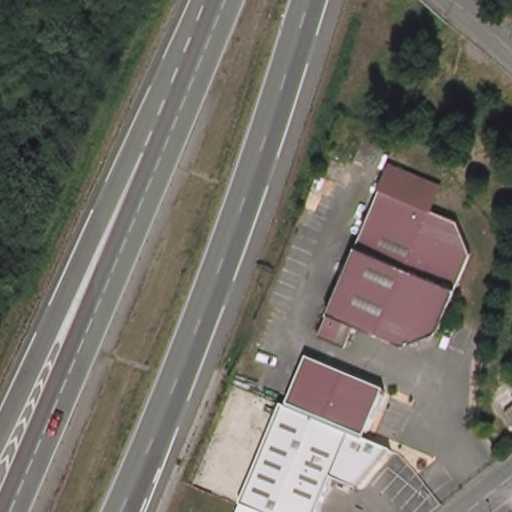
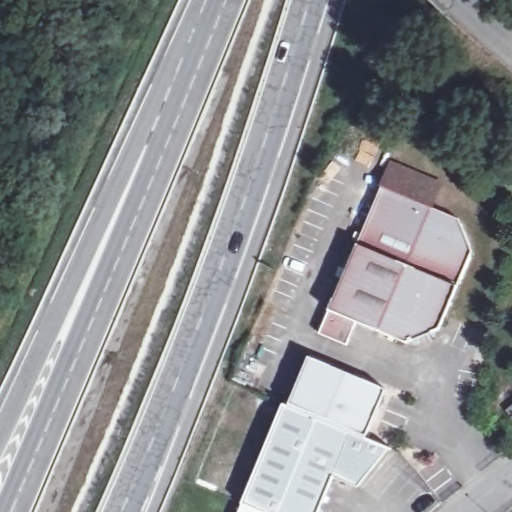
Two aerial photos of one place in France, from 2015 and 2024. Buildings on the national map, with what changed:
unchanged [(392,164),(442,185),(432,208),(382,188),(392,164)]
unchanged [(473,251),(439,332),(411,343),(359,322),(349,346),(335,340),(321,334),(382,188),(432,208),(462,220),(473,251)]
unchanged [(311,357),(382,387),(363,434),(309,412),(292,405),(311,357)]
unchanged [(510,383),(512,385),(512,415),(496,395),(510,383)]
unchanged [(309,412),(363,434),(384,443),(388,445),(354,484),(332,476),(316,512),(262,512),(243,505),(286,402),(292,405),(309,412)]
unchanged [(243,505),(262,512),(240,512),(243,505)]

